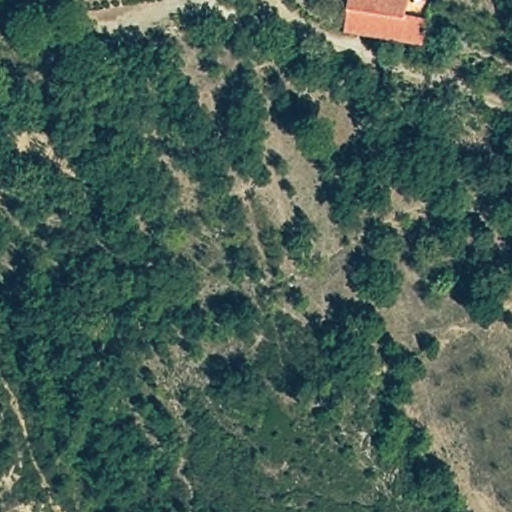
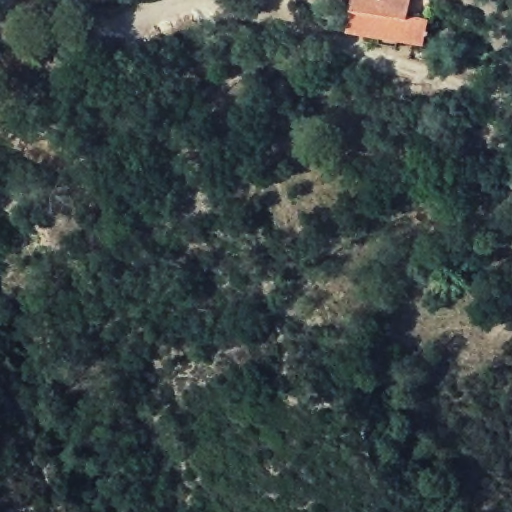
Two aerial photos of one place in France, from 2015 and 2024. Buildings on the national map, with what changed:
unchanged [(340,0),(410,0),(409,15),(428,22),(424,49),(406,47),(343,32),(345,2),(340,0)]

